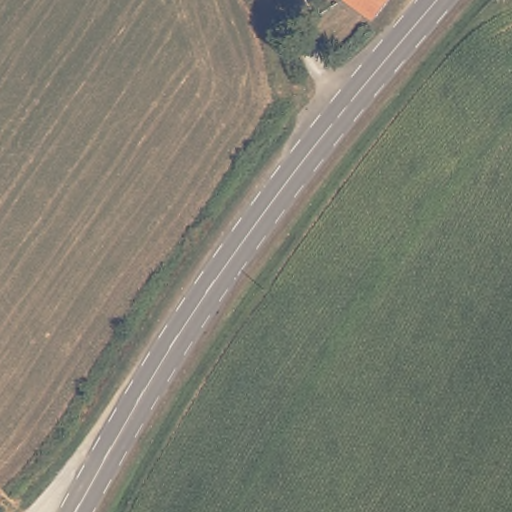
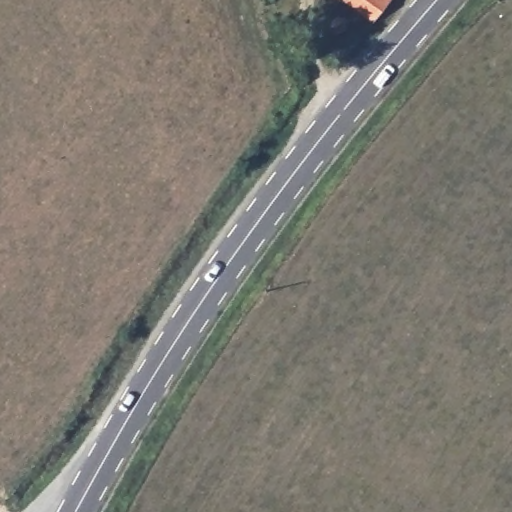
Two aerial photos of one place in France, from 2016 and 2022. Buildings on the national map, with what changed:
unchanged [(370,19),(341,0),(387,0),(370,19)]

